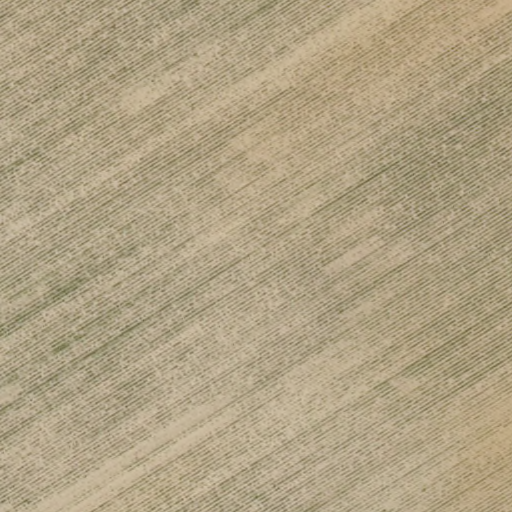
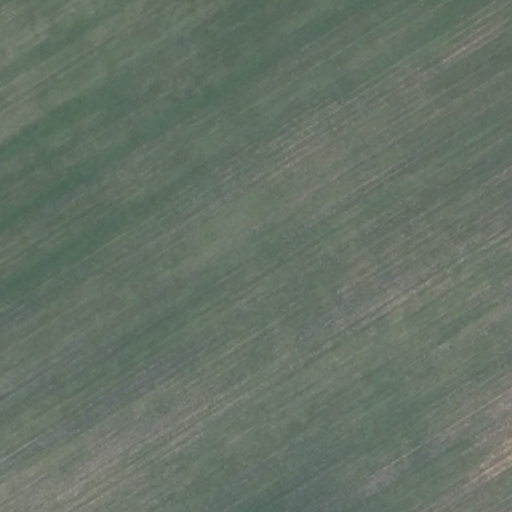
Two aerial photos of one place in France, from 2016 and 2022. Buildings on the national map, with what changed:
[]

